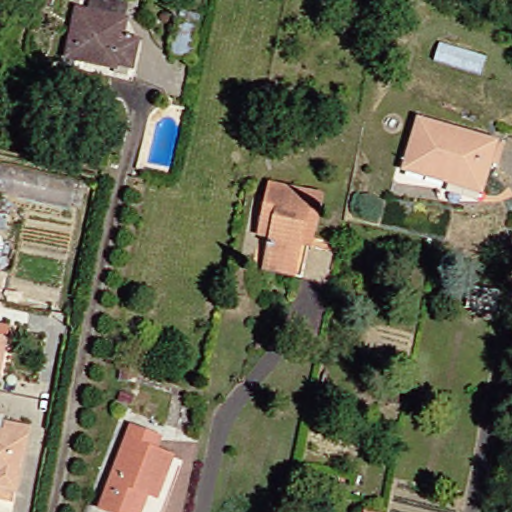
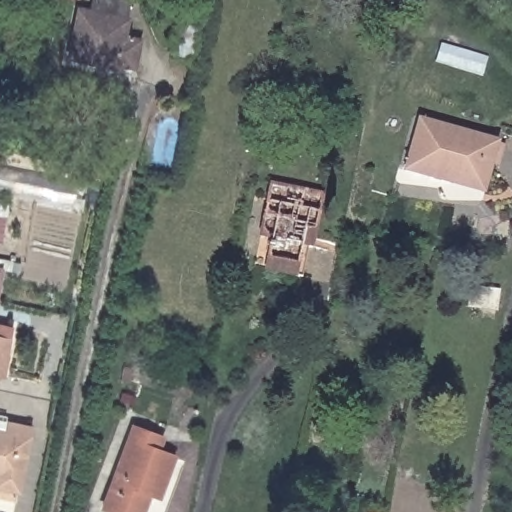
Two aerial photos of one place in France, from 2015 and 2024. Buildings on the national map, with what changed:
unchanged [(93,11),(96,0),(126,0),(141,2),(136,19),(134,39),(149,42),(141,73),(71,61),(83,10),(93,11)]
unchanged [(31,68),(45,71),(39,98),(24,94),(31,68)]
unchanged [(421,124),(500,143),(487,192),(489,194),(408,171),(421,124)]
unchanged [(275,257),(279,238),(266,235),(277,184),(331,196),(322,231),(318,247),(314,246),(307,277),(299,275),(272,268),(275,257)]
unchanged [(0,265),(0,224),(8,226),(0,265)]
unchanged [(0,334),(13,337),(1,383),(0,382),(0,334)]
unchanged [(11,428),(14,428),(35,433),(20,496),(0,492),(0,419),(13,423),(11,428)]
unchanged [(160,452),(177,461),(161,500),(145,494),(137,512),(111,512),(104,510),(136,428),(165,440),(160,452)]

